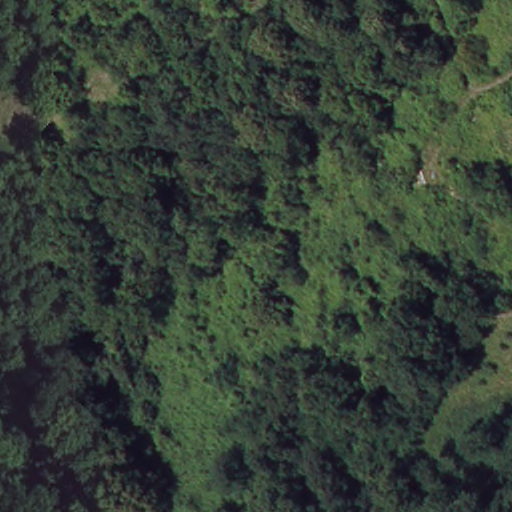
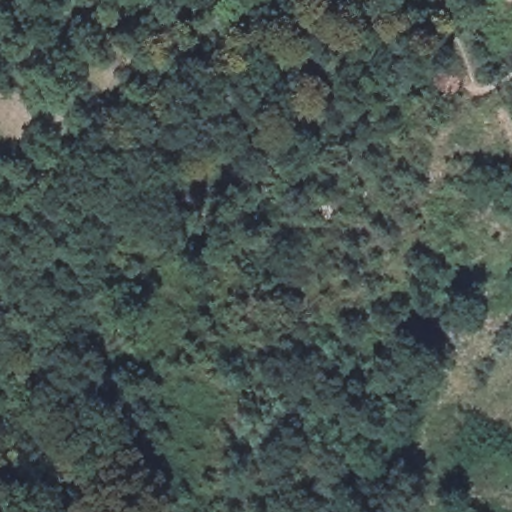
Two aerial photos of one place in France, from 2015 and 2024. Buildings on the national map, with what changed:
unchanged [(103,445),(103,456),(103,477),(68,475),(61,474),(63,442),(103,445)]

